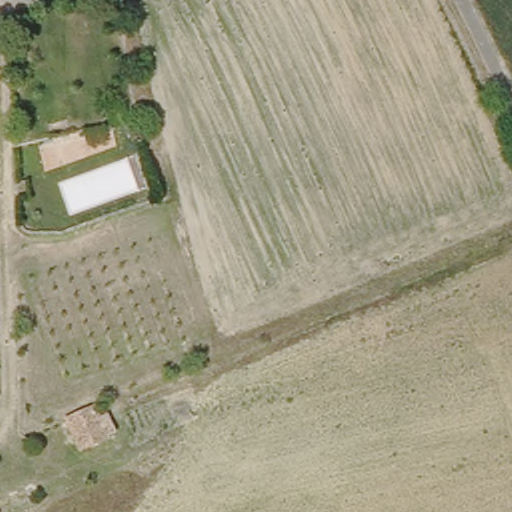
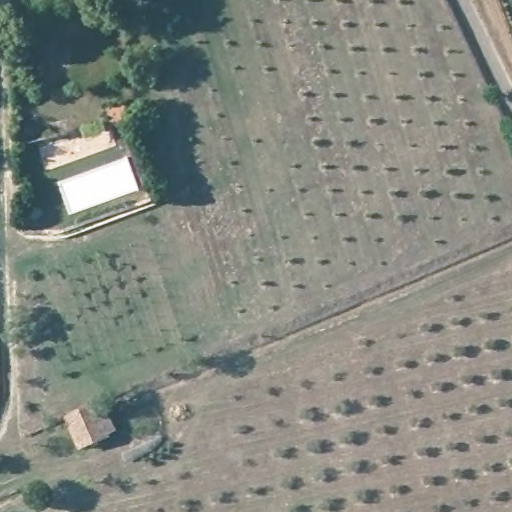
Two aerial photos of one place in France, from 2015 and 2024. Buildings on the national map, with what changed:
unchanged [(101,402),(115,434),(85,446),(72,414),(101,402)]

